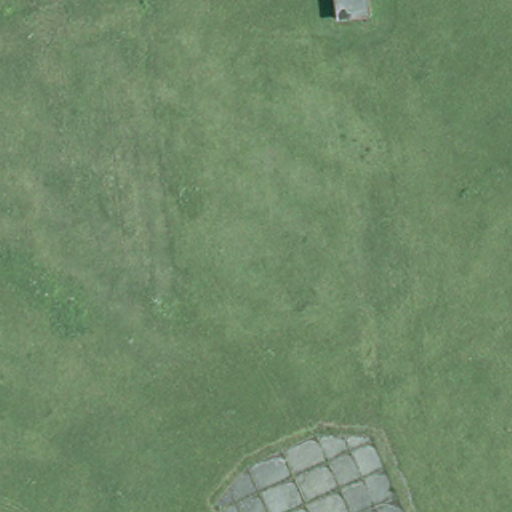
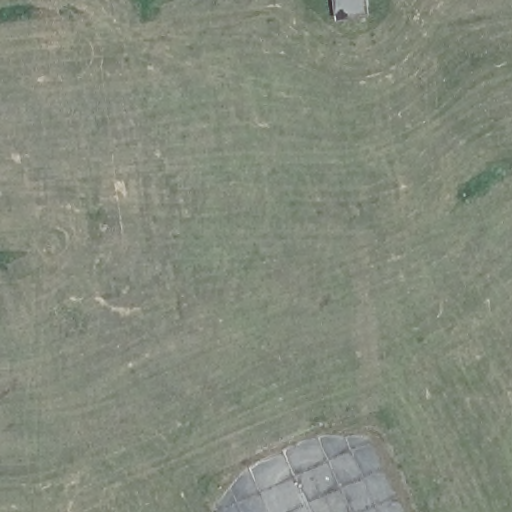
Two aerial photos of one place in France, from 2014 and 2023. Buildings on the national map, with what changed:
unchanged [(375,19),(342,21),(341,0),(374,0),(375,19)]

